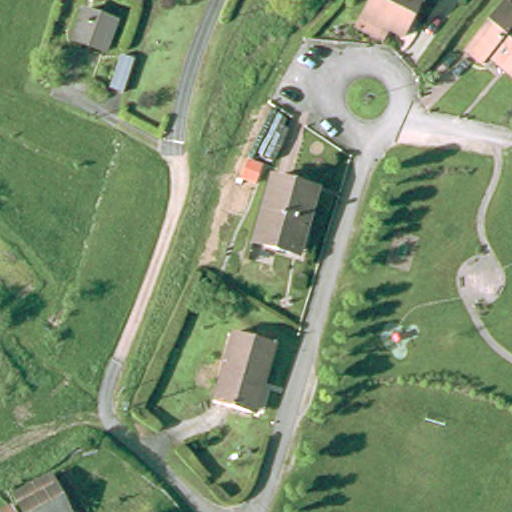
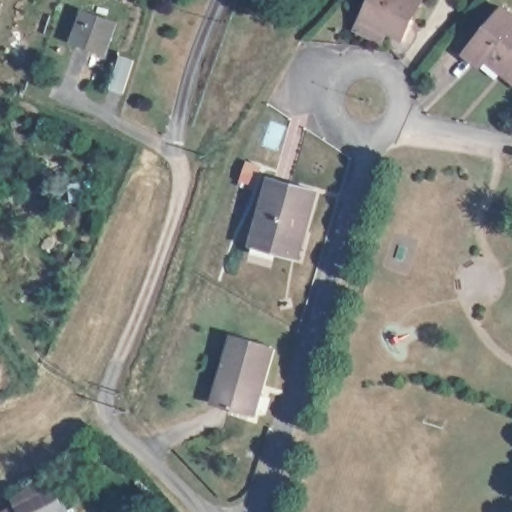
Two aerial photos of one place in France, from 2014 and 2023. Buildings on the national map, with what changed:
unchanged [(358,21),(363,11),(361,10),(366,0),(417,0),(402,30),(385,21),(380,32),(358,21)]
unchanged [(480,65),(461,52),(498,4),(512,15),(512,78),(485,58),(480,65)]
unchanged [(69,34),(81,6),(112,18),(100,47),(82,39),(72,35),(69,34)]
unchanged [(118,56),(106,88),(93,83),(105,51),(118,56)]
unchanged [(288,252),(251,243),(266,176),(310,186),(301,226),(295,254),(288,252)]
unchanged [(248,408),(211,400),(228,329),(272,338),(263,375),(255,410),(248,408)]
unchanged [(91,506),(80,512),(17,512),(11,500),(5,489),(60,461),(91,506)]
unchanged [(11,500),(17,512),(0,512),(0,506),(10,501),(11,500)]

